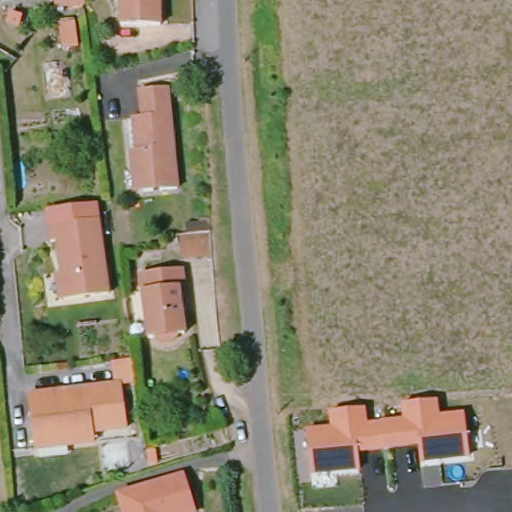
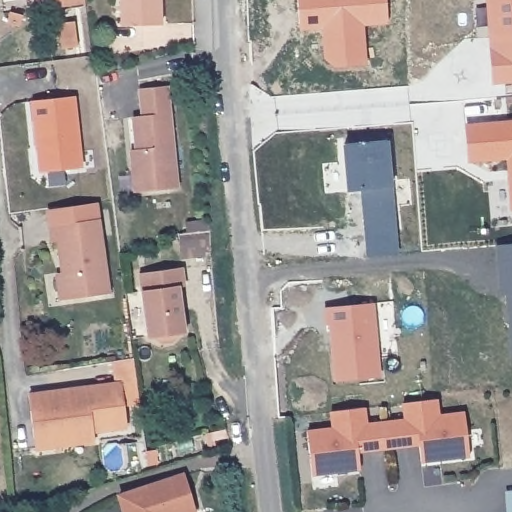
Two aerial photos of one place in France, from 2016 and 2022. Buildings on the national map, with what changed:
unchanged [(116,25),(115,0),(158,0),(160,25),(116,25)]
new [(390,21),(364,24),(368,64),(338,66),(329,59),(327,35),(326,27),(302,29),(299,0),(388,0),(390,21)]
new [(490,84),(488,48),(495,47),(490,0),(512,0),(512,82),(490,84)]
unchanged [(126,167),(125,147),(131,146),(127,116),(138,113),(136,87),(165,84),(172,142),(175,170),(177,187),(138,190),(128,191),(126,167)]
new [(40,172),(31,101),(75,96),(83,167),(40,172)]
new [(511,210),(506,159),(469,162),(465,125),(512,121),(512,210),(511,210)]
new [(391,140),(402,255),(374,257),(368,190),(353,191),(348,145),(391,140)]
unchanged [(56,269),(63,268),(59,242),(52,242),(49,225),(100,219),(112,295),(69,301),(61,302),(56,269)]
unchanged [(178,261),(175,241),(181,240),(180,230),(205,222),(206,232),(209,258),(178,261)]
new [(505,295),(500,295),(495,246),(512,244),(512,351),(505,295)]
unchanged [(179,270),(181,287),(176,292),(183,333),(176,345),(156,347),(152,341),(143,341),(137,276),(179,270)]
new [(376,305),(383,378),(339,382),(334,326),(329,326),(328,310),(376,305)]
unchanged [(29,450),(28,437),(24,394),(111,386),(109,362),(129,359),(133,387),(119,388),(123,431),(64,435),(65,447),(29,450)]
unchanged [(330,429),(328,415),(366,408),(368,424),(400,419),(398,405),(438,400),(440,415),(465,412),(470,460),(423,465),(420,446),(358,455),(359,474),(312,479),(307,432),(330,429)]
unchanged [(195,512),(119,512),(115,495),(184,474),(195,512)]

